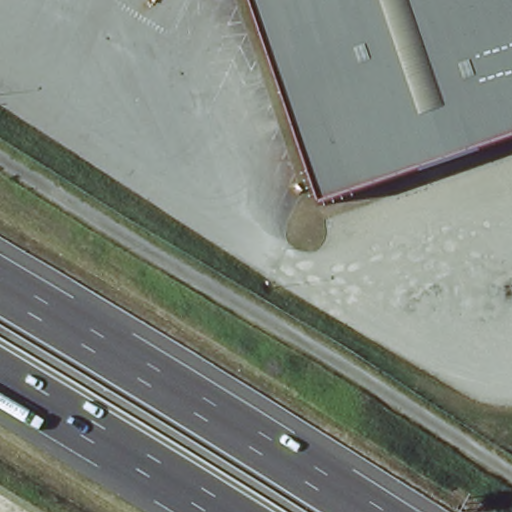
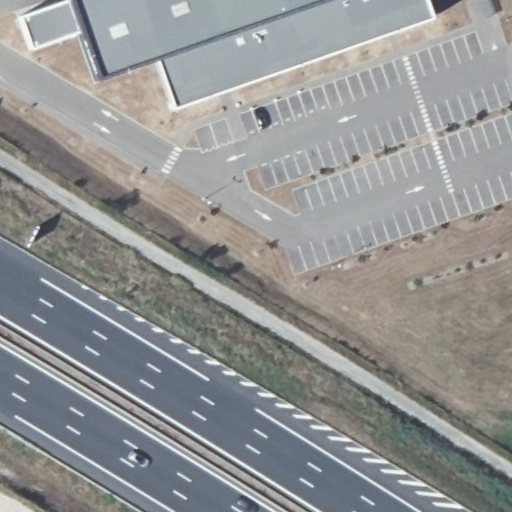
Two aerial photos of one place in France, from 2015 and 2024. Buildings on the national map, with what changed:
new [(426,0),(432,18),(172,109),(154,59),(94,79),(78,30),(31,49),(20,15),(68,0),(426,0)]
demolished [(255,0),(512,0),(512,115),(328,187),(255,0)]

